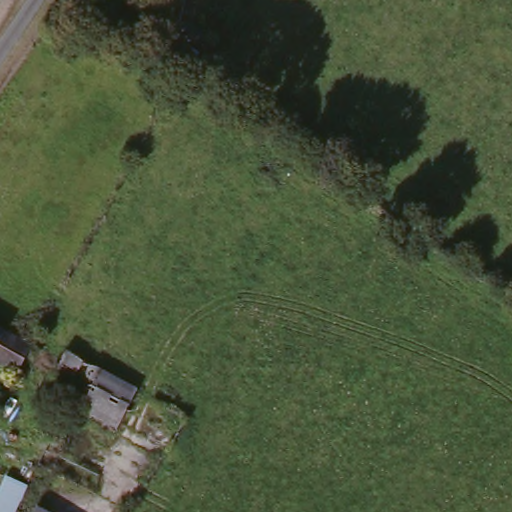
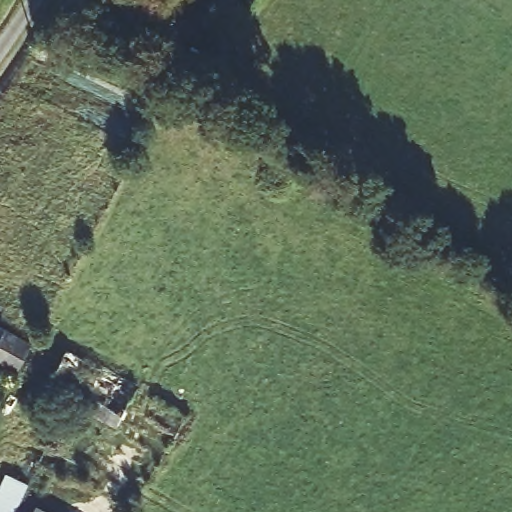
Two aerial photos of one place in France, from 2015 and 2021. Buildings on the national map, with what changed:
unchanged [(36,357),(22,383),(0,371),(0,337),(36,357)]
unchanged [(111,434),(66,412),(39,397),(52,372),(59,360),(129,397),(117,422),(111,434)]
unchanged [(0,512),(0,484),(23,495),(15,512),(0,512)]

